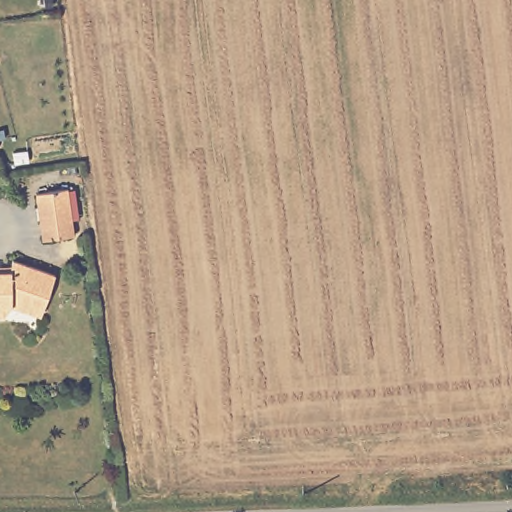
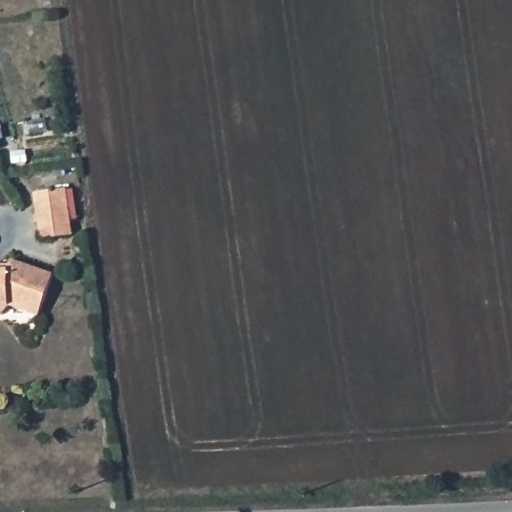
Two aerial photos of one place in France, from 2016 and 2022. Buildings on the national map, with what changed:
unchanged [(42,238),(40,225),(36,194),(67,190),(72,221),(73,234),(42,238)]
unchanged [(8,262),(12,262),(50,279),(35,319),(7,310),(7,311),(1,317),(0,318),(0,262),(8,262)]

